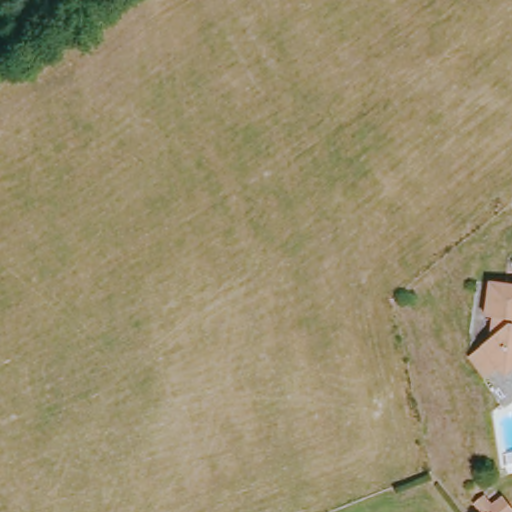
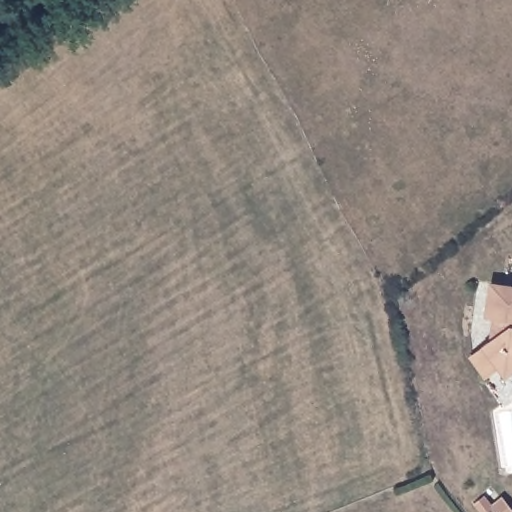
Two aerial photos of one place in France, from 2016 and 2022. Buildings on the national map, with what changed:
unchanged [(496,363),(494,364),(481,371),(467,347),(480,338),(489,332),(491,314),(482,313),(486,281),(512,283),(512,363),(500,372),(496,363)]
unchanged [(492,498),(503,505),(512,499),(512,512),(496,512),(487,502),(492,498)]

